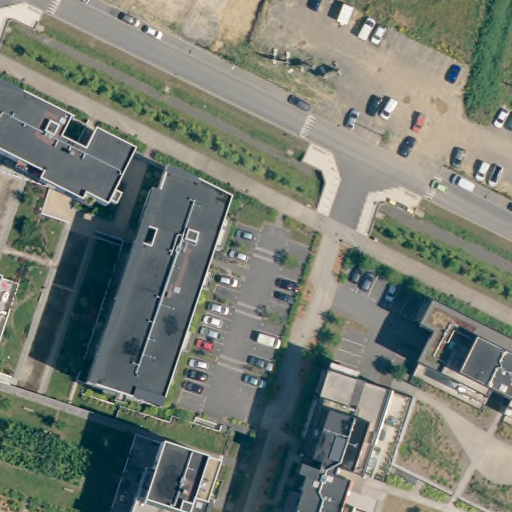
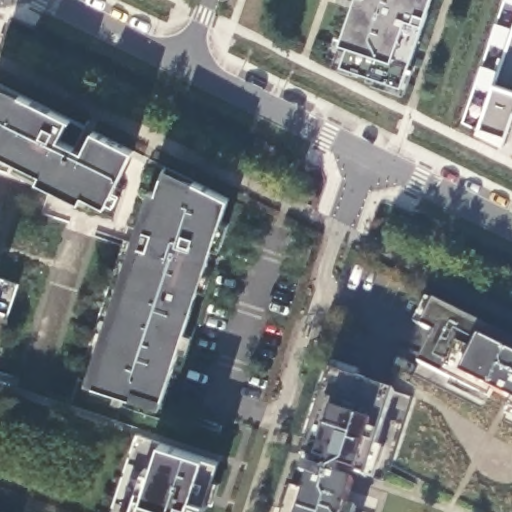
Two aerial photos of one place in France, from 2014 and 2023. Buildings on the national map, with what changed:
new [(426,22),(405,84),(345,63),(336,61),(342,41),(356,0),(433,0),(426,22)]
new [(507,134),(480,126),(494,83),(498,84),(512,39),(512,119),(507,134)]
unchanged [(59,140),(83,152),(94,132),(132,152),(106,206),(84,196),(81,203),(38,182),(41,175),(0,154),(0,85),(69,119),(59,140)]
unchanged [(228,198),(159,407),(86,383),(149,190),(155,192),(165,167),(228,198)]
unchanged [(493,391),(490,399),(419,364),(434,333),(422,327),(435,301),(512,340),(512,401),(493,391)]
unchanged [(367,479),(342,471),(339,478),(355,483),(347,506),(357,509),(356,512),(284,512),(331,372),(395,393),(377,448),(367,479)]
unchanged [(508,409),(512,402),(512,411),(508,409)]
unchanged [(143,500),(160,443),(204,457),(218,462),(208,505),(206,512),(130,512),(135,498),(143,500)]

